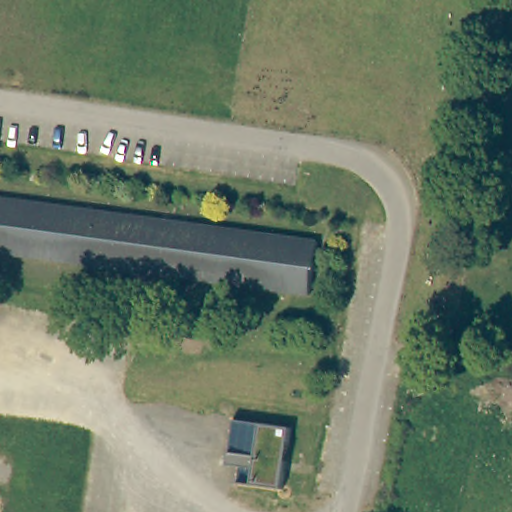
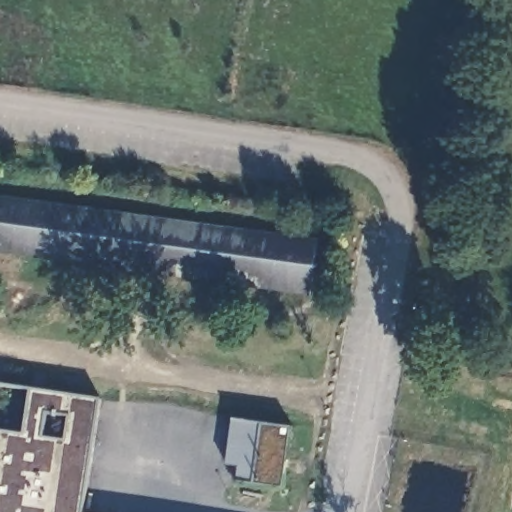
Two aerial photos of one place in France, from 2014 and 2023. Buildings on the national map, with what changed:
unchanged [(317,242),(310,296),(0,256),(0,201),(317,242)]
new [(23,435),(30,390),(99,400),(85,512),(0,512),(0,432),(23,435)]
unchanged [(240,485),(243,465),(227,462),(236,420),(292,429),(282,487),(240,485)]

